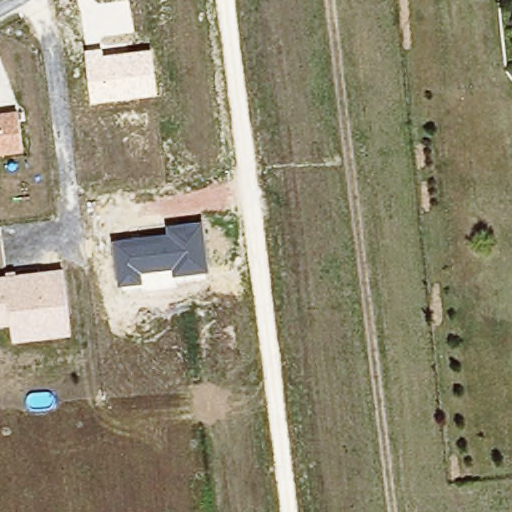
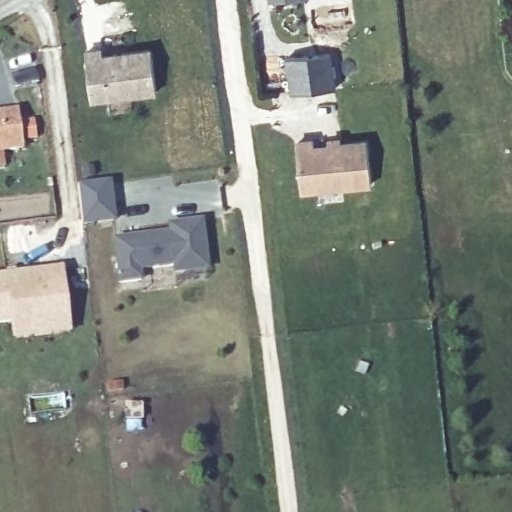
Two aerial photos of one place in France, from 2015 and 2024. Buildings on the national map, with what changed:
new [(271,1),(271,0),(275,0),(271,1)]
unchanged [(103,47),(104,57),(151,50),(157,95),(92,105),(86,50),(103,47)]
new [(335,89),(290,94),(287,57),(330,51),(335,89)]
unchanged [(23,152),(0,155),(0,112),(18,110),(23,152)]
new [(313,139),(314,145),(326,143),(326,140),(341,138),(341,143),(367,140),(372,186),(302,194),(297,142),(313,139)]
new [(79,184),(112,180),(117,222),(84,226),(79,184)]
unchanged [(168,232),(166,226),(202,221),(207,270),(174,274),(172,268),(143,273),(143,282),(118,285),(113,240),(168,232)]
unchanged [(13,342),(11,326),(0,327),(0,275),(64,268),(71,334),(13,342)]

